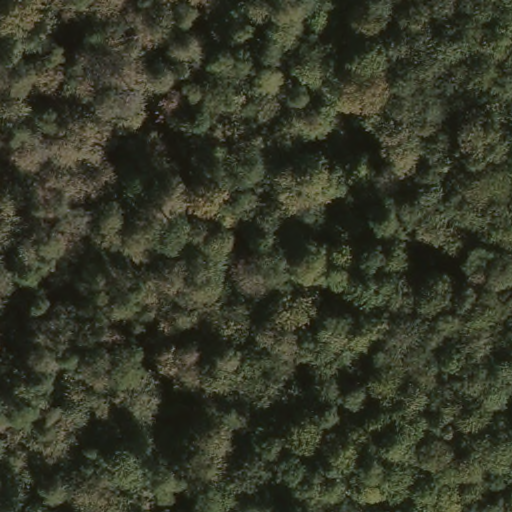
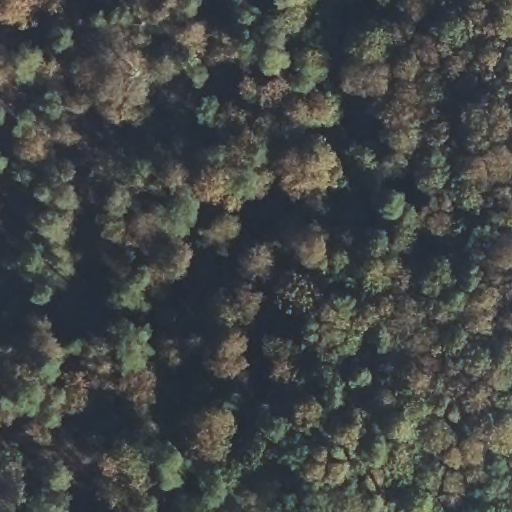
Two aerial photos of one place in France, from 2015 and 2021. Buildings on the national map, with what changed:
[]

